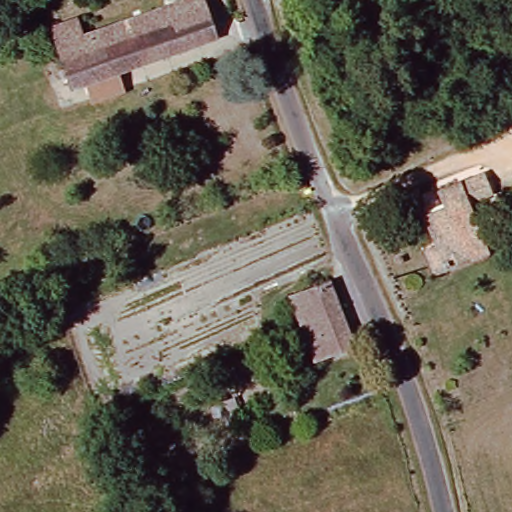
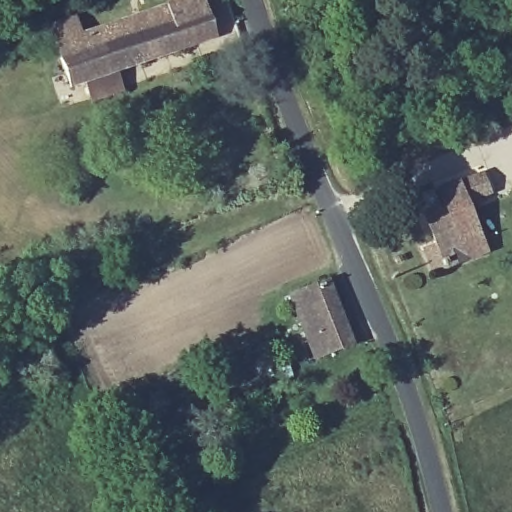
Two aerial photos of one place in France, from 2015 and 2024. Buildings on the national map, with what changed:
unchanged [(73,88),(53,24),(81,16),(88,32),(202,0),(206,0),(218,42),(88,84),(73,88)]
unchanged [(430,258),(441,254),(432,227),(453,219),(448,202),(489,187),(495,205),(475,211),(488,250),(492,261),(437,278),(434,270),(430,258)]
unchanged [(289,294),(333,279),(358,347),(316,362),(289,294)]

